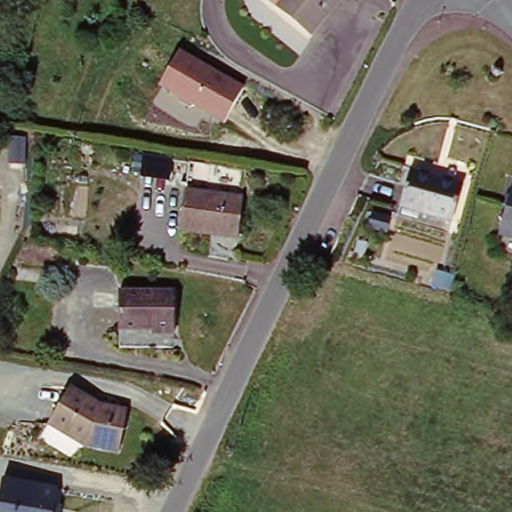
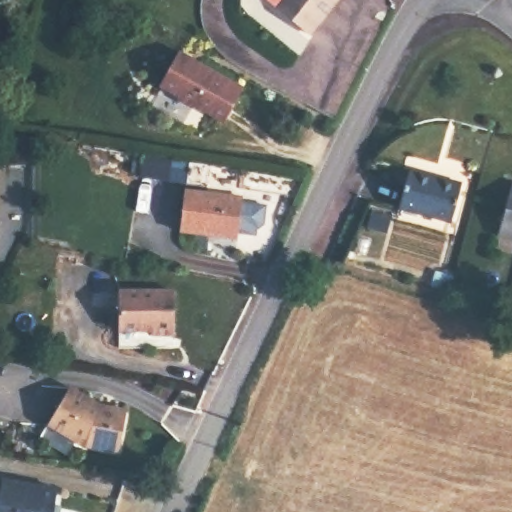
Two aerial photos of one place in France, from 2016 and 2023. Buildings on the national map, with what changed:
unchanged [(309,34),(270,0),(340,0),(309,34)]
unchanged [(244,84),(225,119),(161,85),(182,49),(244,84)]
unchanged [(187,182),(169,179),(174,157),(191,160),(187,182)]
unchanged [(464,184),(451,221),(396,206),(409,169),(464,184)]
unchanged [(500,221),(495,212),(505,209),(512,188),(512,235),(498,231),(500,221)]
unchanged [(248,201),(239,239),(181,230),(190,191),(248,201)]
unchanged [(444,265),(464,271),(459,289),(439,283),(444,265)]
unchanged [(119,286),(175,287),(173,331),(145,330),(145,325),(119,326),(119,286)]
unchanged [(98,400),(126,406),(120,446),(84,441),(52,424),(72,385),(98,400)]
unchanged [(62,506),(61,512),(0,512),(0,485),(1,476),(58,486),(56,504),(62,506)]

